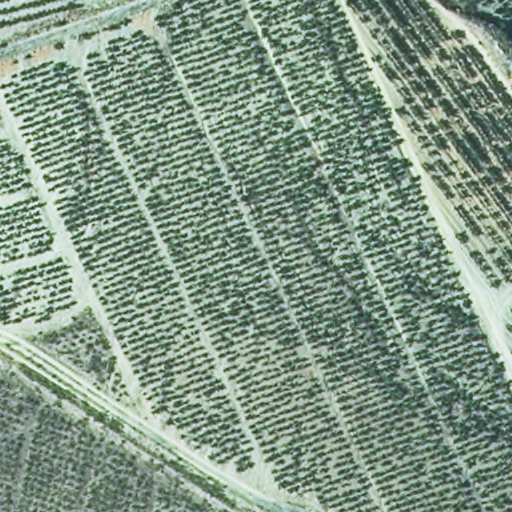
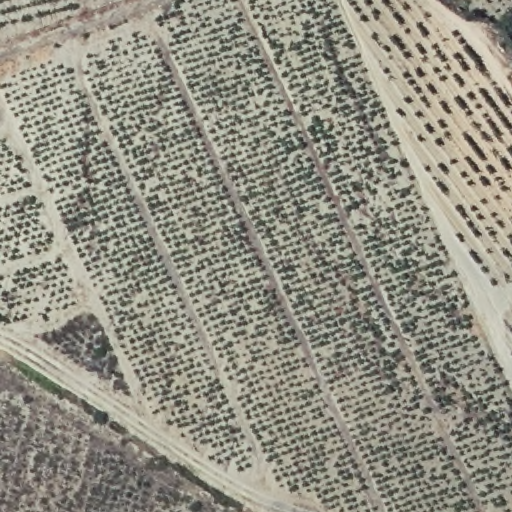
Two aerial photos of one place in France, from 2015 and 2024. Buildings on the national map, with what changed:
unchanged [(512,69),(512,74),(510,70),(512,69)]

